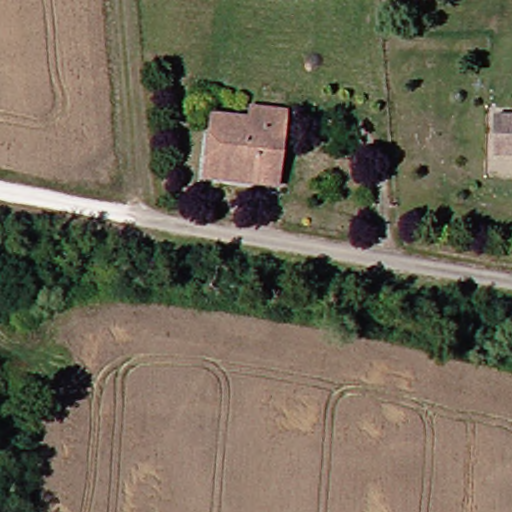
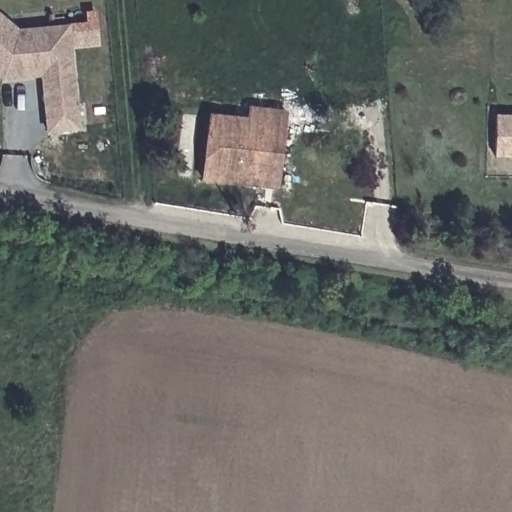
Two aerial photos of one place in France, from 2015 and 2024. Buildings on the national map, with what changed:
new [(70,23),(81,128),(46,132),(41,76),(3,79),(0,77),(0,13),(18,28),(70,23)]
unchanged [(265,180),(206,174),(210,123),(251,125),(252,107),(290,112),(285,150),(281,183),(265,180)]
unchanged [(498,150),(497,109),(512,109),(512,150),(498,150)]

